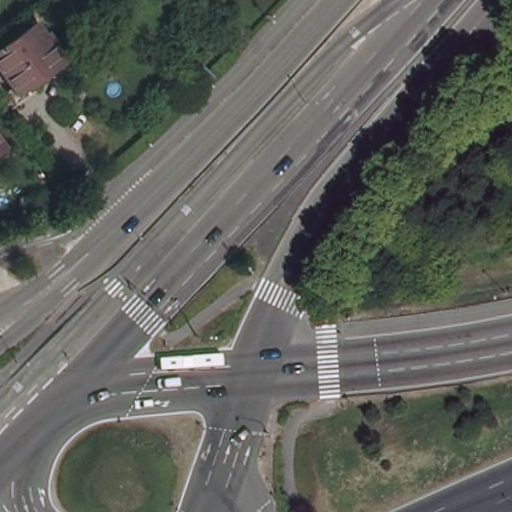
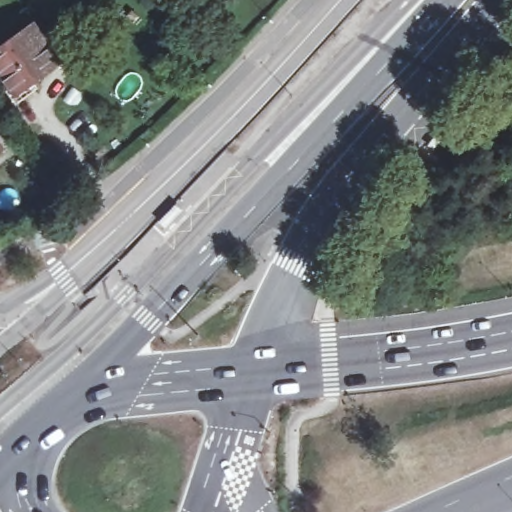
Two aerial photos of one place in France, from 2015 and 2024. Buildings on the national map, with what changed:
unchanged [(17,105),(7,92),(13,87),(0,69),(0,50),(35,24),(61,60),(34,79),(40,88),(17,105)]
unchanged [(2,145),(0,146),(0,143),(2,145)]

